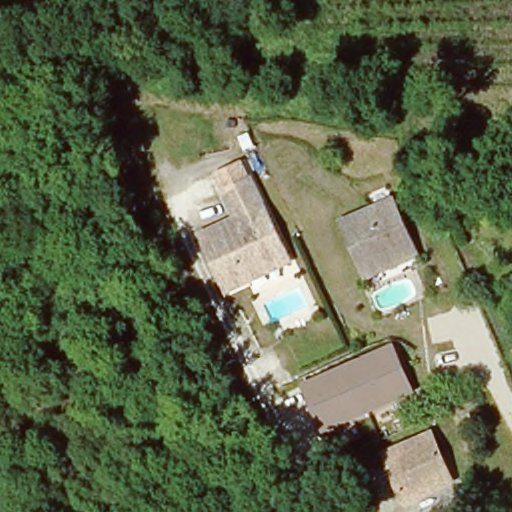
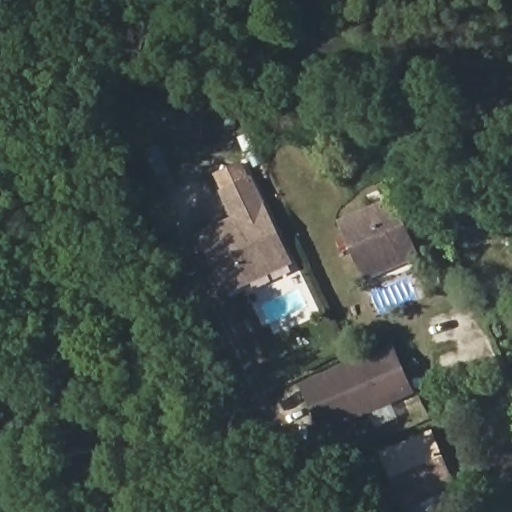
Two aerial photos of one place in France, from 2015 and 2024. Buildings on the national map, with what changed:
unchanged [(247,281),(226,291),(200,235),(236,219),(223,191),(250,179),(284,252),(289,261),(247,281)]
unchanged [(393,201),(414,252),(363,273),(341,223),(393,201)]
unchanged [(319,381),(388,348),(394,362),(406,389),(337,421),(324,395),(319,381)]
unchanged [(403,505),(380,456),(429,431),(453,482),(403,505)]

